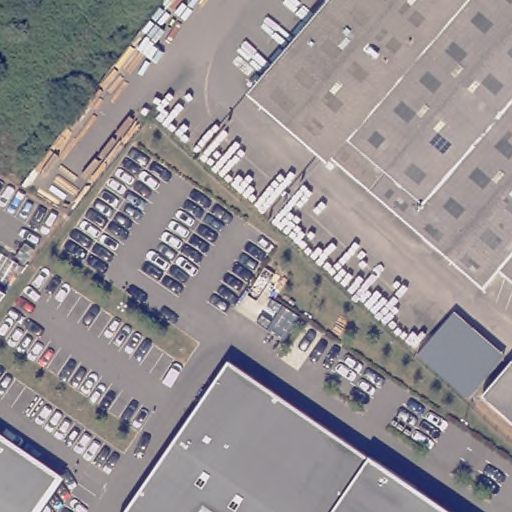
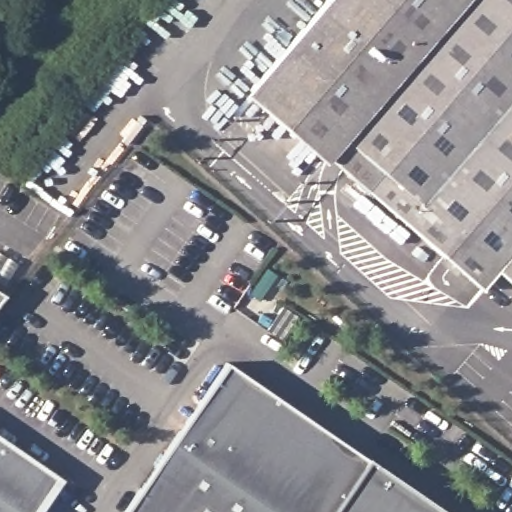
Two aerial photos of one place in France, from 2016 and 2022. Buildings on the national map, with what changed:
unchanged [(486,286),(257,89),(335,0),(512,0),(512,276),(502,268),(486,286)]
unchanged [(7,292),(0,301),(0,288),(7,292)]
demolished [(468,397),(418,355),(454,312),(503,355),(468,397)]
unchanged [(405,475),(452,512),(124,512),(227,362),(405,475)]
demolished [(509,365),(512,368),(512,426),(480,399),(509,365)]
unchanged [(63,479),(40,512),(0,512),(0,440),(63,479)]

